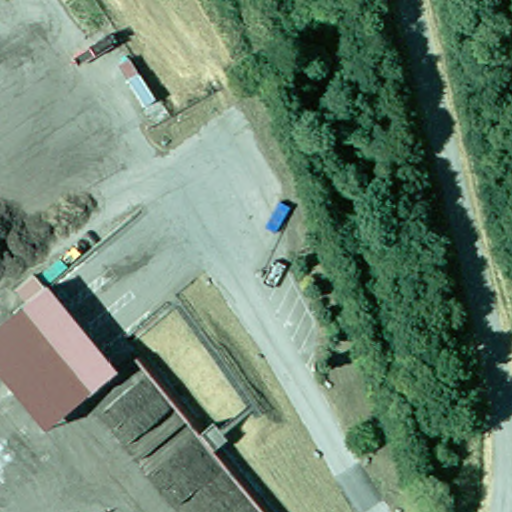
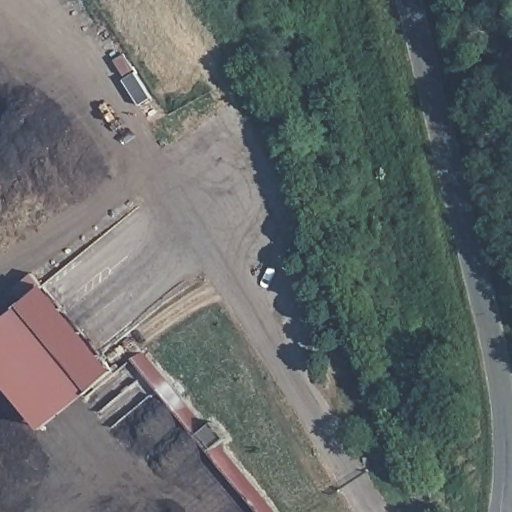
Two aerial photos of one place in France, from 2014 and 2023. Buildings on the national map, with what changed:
unchanged [(0,377),(0,331),(50,294),(116,380),(47,435),(0,377)]

